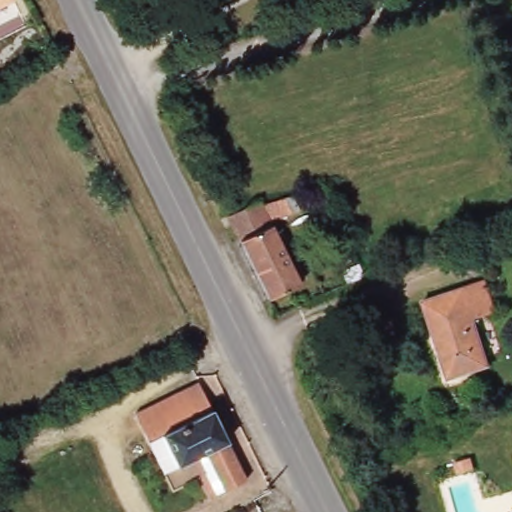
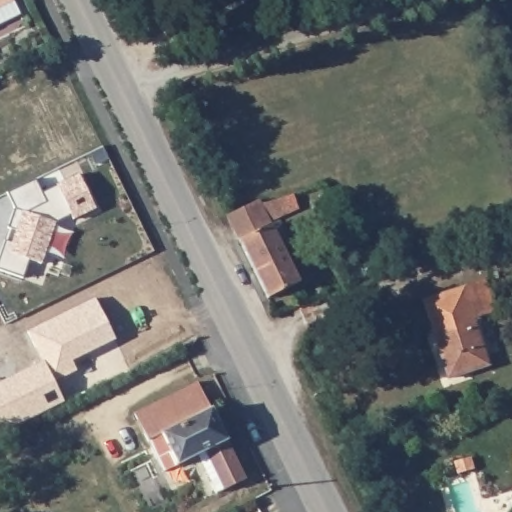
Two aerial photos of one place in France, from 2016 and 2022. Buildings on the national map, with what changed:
unchanged [(14,0),(15,3),(0,10),(0,0),(14,0)]
new [(12,242),(16,232),(8,228),(15,209),(7,193),(36,179),(42,192),(80,174),(96,209),(75,220),(72,215),(56,222),(41,264),(30,261),(24,279),(0,270),(0,255),(5,241),(12,242)]
unchanged [(300,289),(267,304),(226,221),(259,205),(261,209),(293,199),(297,214),(269,225),(300,289)]
unchanged [(489,366),(448,379),(422,301),(485,280),(495,312),(474,319),(489,366)]
new [(128,369),(0,428),(0,383),(43,362),(30,333),(95,302),(128,369)]
unchanged [(241,480),(210,495),(192,457),(157,474),(129,414),(193,383),(241,480)]

